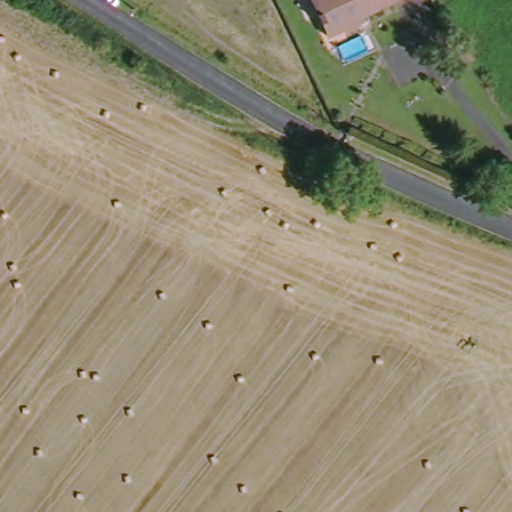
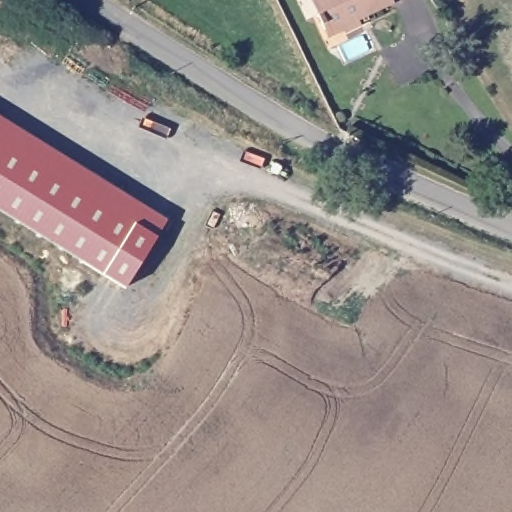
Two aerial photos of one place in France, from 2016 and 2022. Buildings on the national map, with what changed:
unchanged [(364,11),(355,14),(360,26),(345,31),(341,30),(330,33),(326,23),(322,25),(317,14),(321,13),(315,0),(413,0),(366,16),(364,11)]
new [(167,220),(156,237),(125,287),(104,274),(0,211),(0,117),(167,220)]

